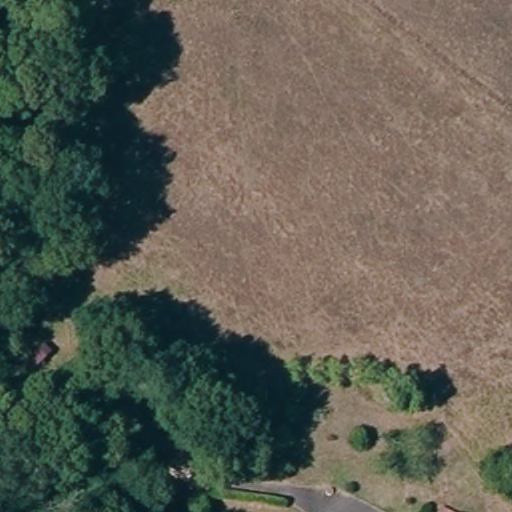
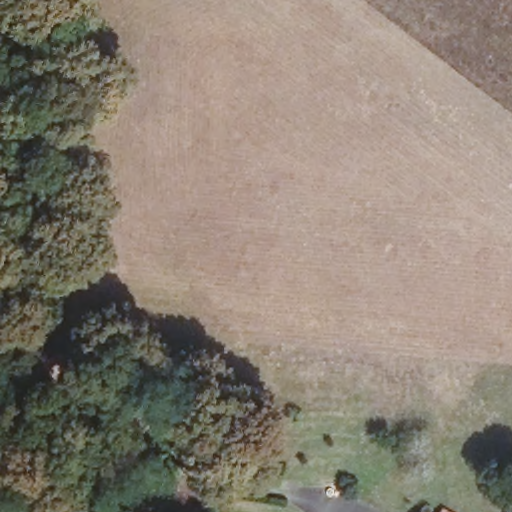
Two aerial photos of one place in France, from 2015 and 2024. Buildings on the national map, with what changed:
unchanged [(443,506),(452,512),(440,512),(443,506)]

